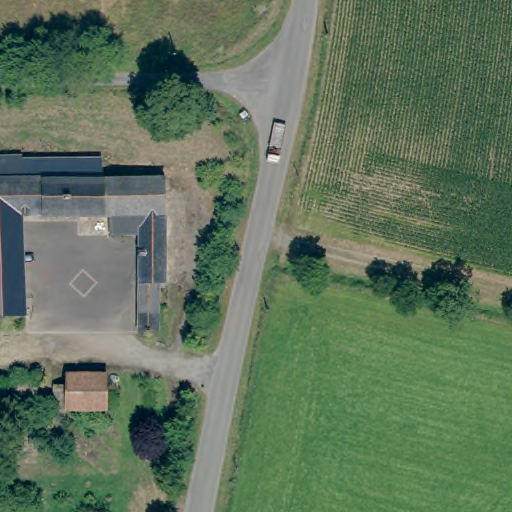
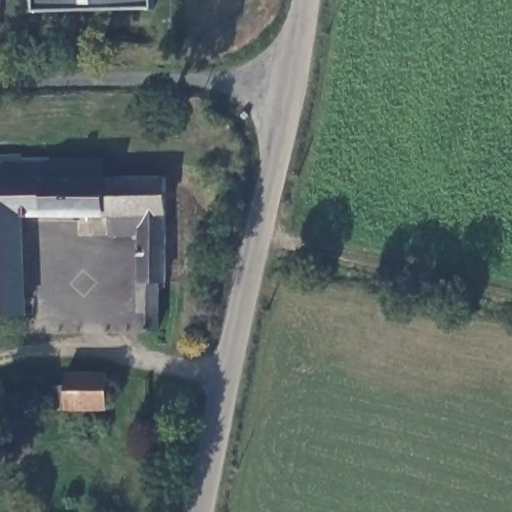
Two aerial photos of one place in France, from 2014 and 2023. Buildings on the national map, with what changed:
new [(36,0),(155,0),(156,8),(36,10),(36,0)]
unchanged [(17,162),(16,165),(98,165),(98,183),(162,183),(163,220),(161,220),(161,288),(161,295),(154,296),(154,337),(135,337),(136,288),(137,240),(109,240),(109,220),(17,221),(0,221),(0,162),(17,162)]
unchanged [(21,320),(0,320),(0,221),(17,221),(21,320)]
unchanged [(108,375),(107,410),(55,409),(56,386),(67,386),(67,374),(108,375)]
unchanged [(7,388),(7,419),(0,419),(0,388),(7,388)]

